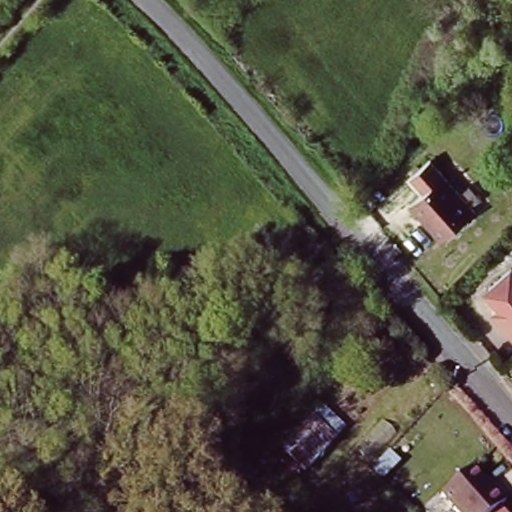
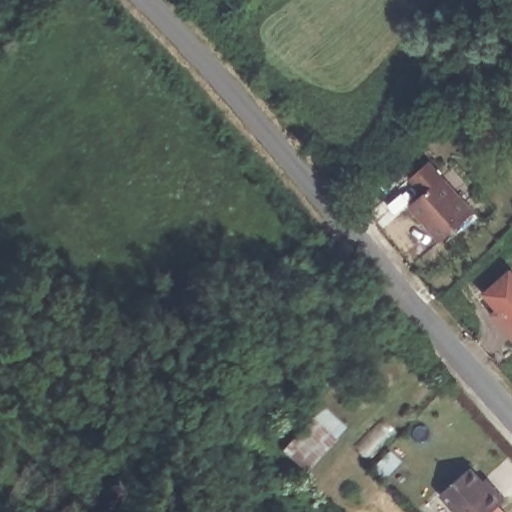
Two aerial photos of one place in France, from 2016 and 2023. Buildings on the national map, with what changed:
unchanged [(485,210),(454,239),(421,203),(452,173),(485,210)]
unchanged [(492,294),(494,292),(512,274),(512,318),(492,294)]
unchanged [(353,428),(310,474),(281,449),(327,402),(353,428)]
unchanged [(502,484),(512,496),(512,498),(496,512),(461,512),(445,494),(476,467),(496,489),(502,484)]

